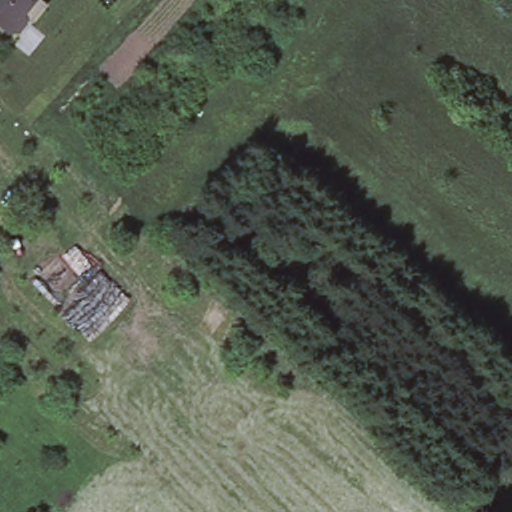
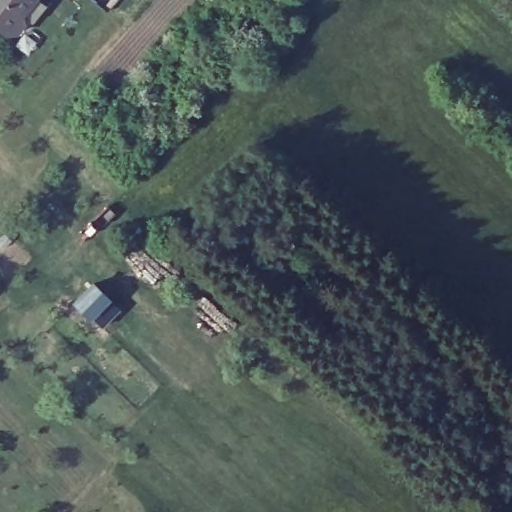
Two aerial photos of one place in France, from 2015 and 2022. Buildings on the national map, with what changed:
unchanged [(0,7),(0,0),(6,0),(0,7)]
unchanged [(31,19),(23,18),(14,30),(3,31),(0,29),(0,7),(6,0),(42,0),(45,2),(31,19)]

